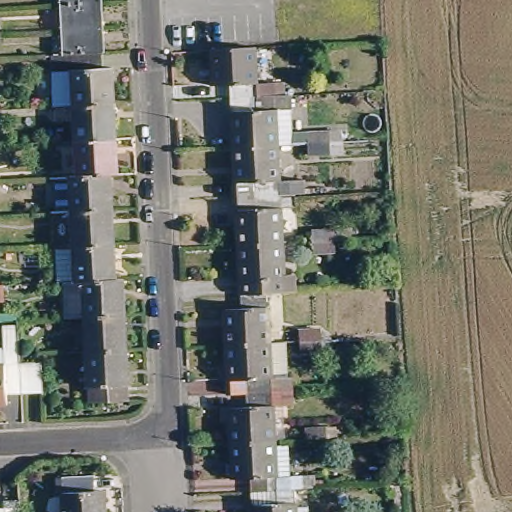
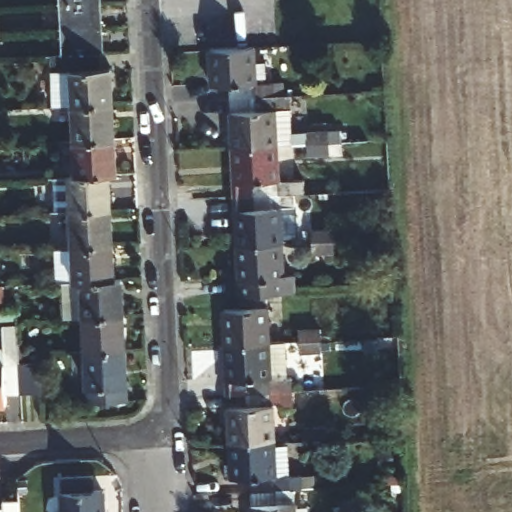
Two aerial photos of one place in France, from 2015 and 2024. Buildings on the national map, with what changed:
unchanged [(104,25),(106,52),(64,55),(63,29),(61,2),(61,0),(103,0),(104,25)]
unchanged [(2,16),(3,38),(0,38),(0,16),(2,16)]
unchanged [(353,152),(317,153),(317,142),(286,144),(232,148),(229,101),(228,89),(203,90),(201,51),(255,49),(257,90),(271,89),(271,90),(284,89),(284,98),(292,97),(294,131),(317,130),(353,129),(353,140),(353,152)]
unchanged [(78,109),(60,109),(58,55),(64,55),(106,52),(107,68),(115,67),(118,107),(78,109)]
unchanged [(78,109),(118,107),(119,141),(80,142),(78,109)]
unchanged [(83,177),(80,142),(119,141),(121,176),(113,176),(83,177)]
unchanged [(232,148),(286,144),(289,179),(310,178),(311,192),(304,192),(234,196),(232,148)]
unchanged [(64,216),(60,216),(60,178),(83,177),(113,176),(115,213),(76,215),(64,216)]
unchanged [(237,248),(234,196),(304,192),(305,206),(290,207),(292,245),(237,248)]
unchanged [(88,249),(78,249),(76,215),(115,213),(118,248),(88,249)]
unchanged [(333,248),(333,238),(333,226),(371,224),(372,235),(354,236),(354,247),(333,248)]
unchanged [(292,245),(294,280),(269,282),(269,295),(241,297),(237,248),(292,245)]
unchanged [(88,249),(118,248),(120,281),(74,283),(67,283),(60,283),(60,251),(78,249),(88,249)]
unchanged [(68,319),(67,283),(74,283),(120,281),(126,280),(128,317),(96,318),(89,318),(68,319)]
unchanged [(3,306),(0,307),(0,290),(1,290),(3,306)]
unchanged [(216,348),(214,311),(241,310),(241,297),(269,295),(271,346),(216,348)]
unchanged [(91,355),(89,318),(96,318),(128,317),(130,354),(91,355)]
unchanged [(312,350),(311,339),(311,326),(333,325),(334,337),(334,348),(312,350)]
unchanged [(39,395),(18,396),(2,397),(3,406),(0,407),(0,329),(14,328),(16,366),(37,364),(39,391),(39,395)]
unchanged [(286,345),(288,376),(293,376),(294,395),(246,398),(219,399),(216,348),(271,346),(286,345)]
unchanged [(132,391),(123,391),(123,406),(94,407),(91,355),(130,354),(132,391)]
unchanged [(248,448),(221,450),(220,414),(246,413),(246,398),(294,395),(296,409),(284,410),(286,447),(248,448)]
unchanged [(323,440),(318,440),(318,428),(339,427),(341,439),(323,440)]
unchanged [(251,483),(223,484),(221,450),(248,448),(286,447),(289,446),(292,480),(302,479),(303,491),(251,494),(251,483)]
unchanged [(63,479),(93,477),(94,495),(103,494),(104,512),(65,512),(63,479)]
unchanged [(251,494),(303,491),(304,507),(316,507),(316,512),(252,512),(251,494)]
unchanged [(19,512),(0,512),(0,508),(19,508),(19,512)]

